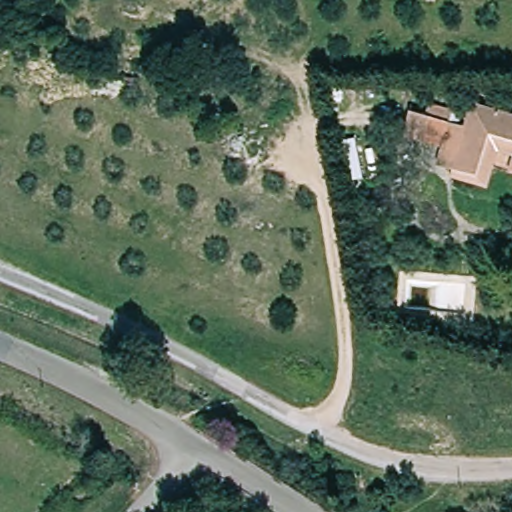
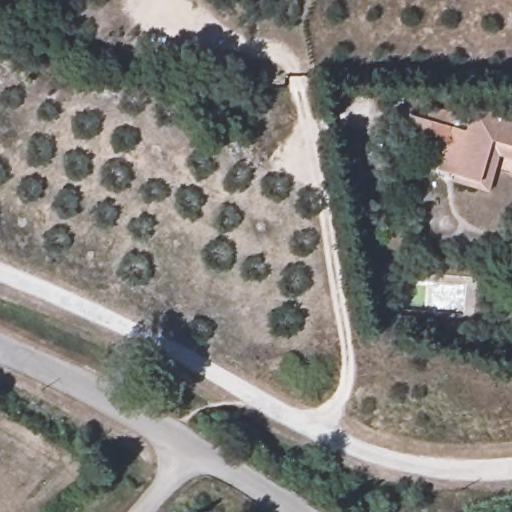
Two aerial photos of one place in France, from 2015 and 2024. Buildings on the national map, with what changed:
unchanged [(467,128),(475,103),(512,114),(512,151),(500,147),(488,188),(452,177),(455,169),(437,164),(442,146),(404,134),(410,111),(467,128)]
unchanged [(510,170),(512,162),(512,171),(510,170)]
unchanged [(418,312),(416,327),(398,325),(399,310),(418,312)]

